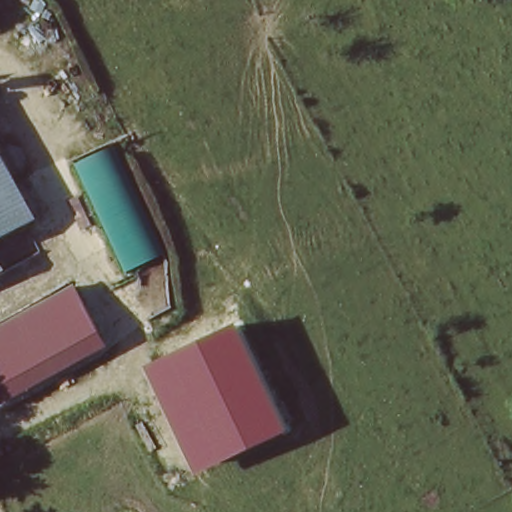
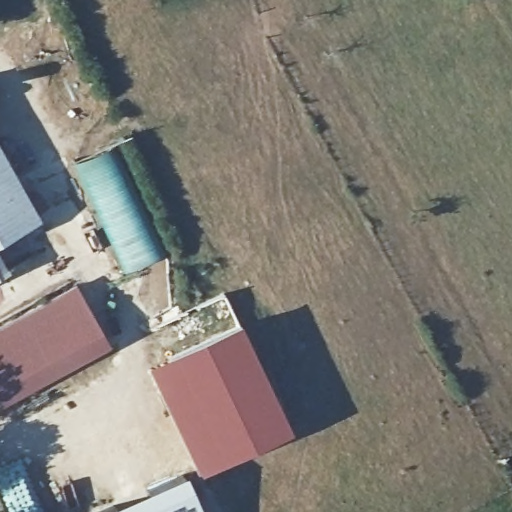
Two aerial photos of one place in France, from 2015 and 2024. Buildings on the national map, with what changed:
unchanged [(125,271),(78,160),(115,145),(162,253),(125,271)]
unchanged [(0,149),(39,218),(0,238),(0,149)]
unchanged [(0,273),(0,258),(6,269),(0,273)]
unchanged [(0,397),(0,328),(70,290),(102,351),(4,403),(0,397)]
unchanged [(286,430),(197,471),(148,366),(239,324),(286,430)]
new [(202,512),(91,512),(184,471),(202,512)]

